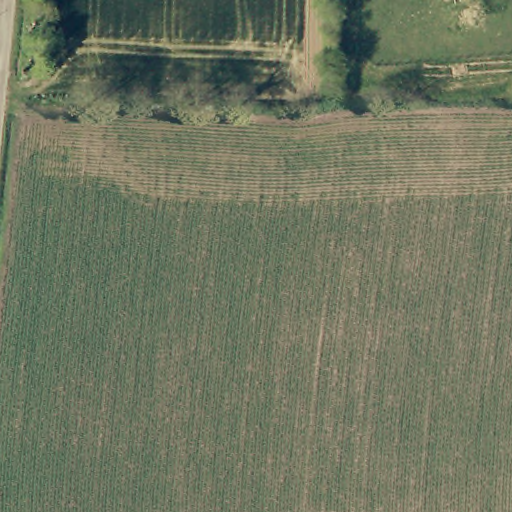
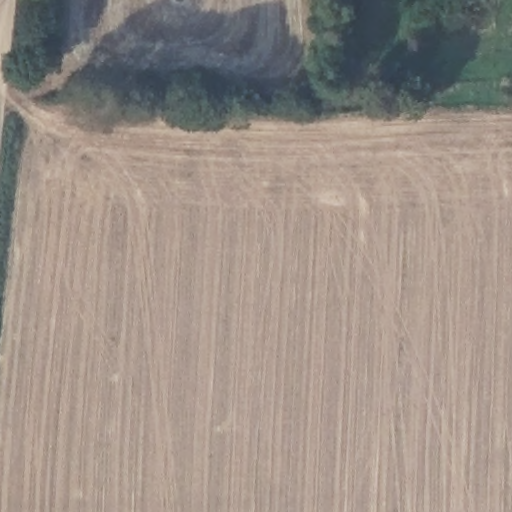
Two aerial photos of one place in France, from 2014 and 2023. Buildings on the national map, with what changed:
[]

